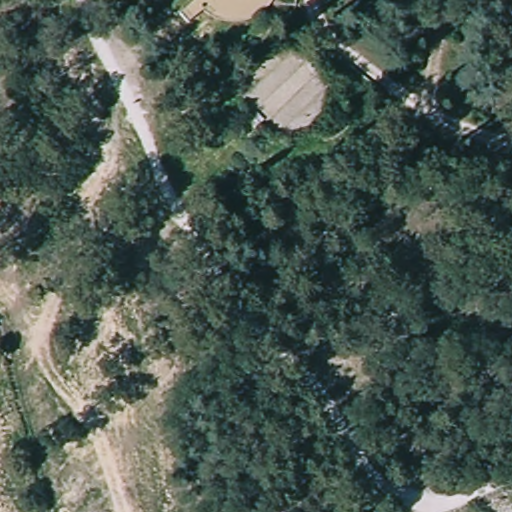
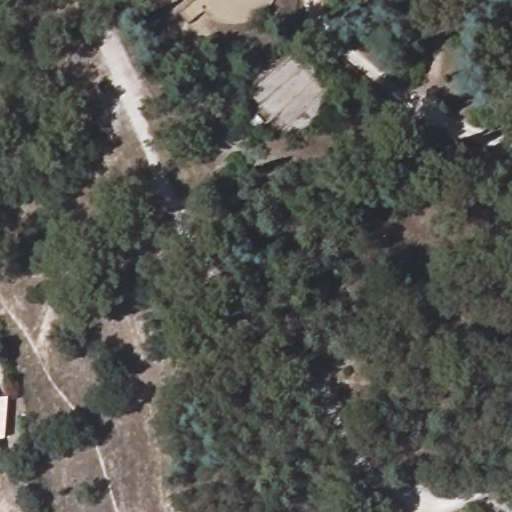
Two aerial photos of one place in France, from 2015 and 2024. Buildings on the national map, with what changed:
unchanged [(127,254),(153,247),(163,274),(138,279),(127,254)]
new [(8,397),(5,440),(0,441),(0,398),(8,397)]

